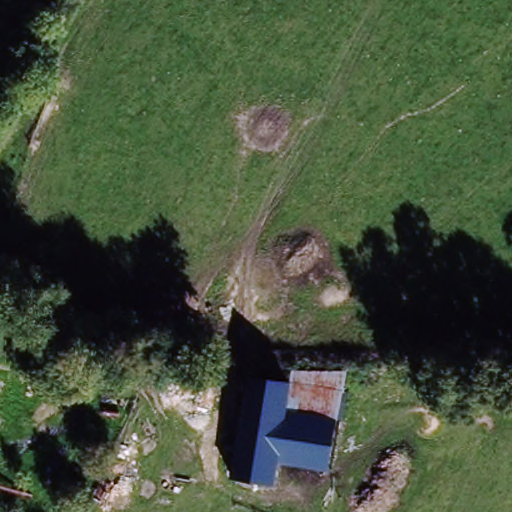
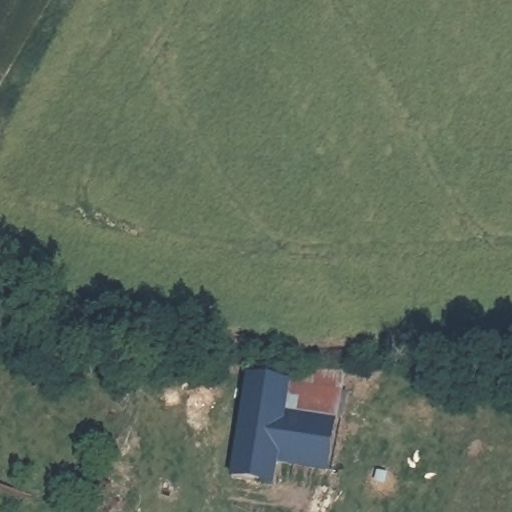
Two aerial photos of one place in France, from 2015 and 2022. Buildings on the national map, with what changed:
unchanged [(277,482),(237,475),(252,379),(293,385),(288,410),(281,461),(277,482)]
unchanged [(331,469),(281,461),(288,410),(338,418),(331,469)]

